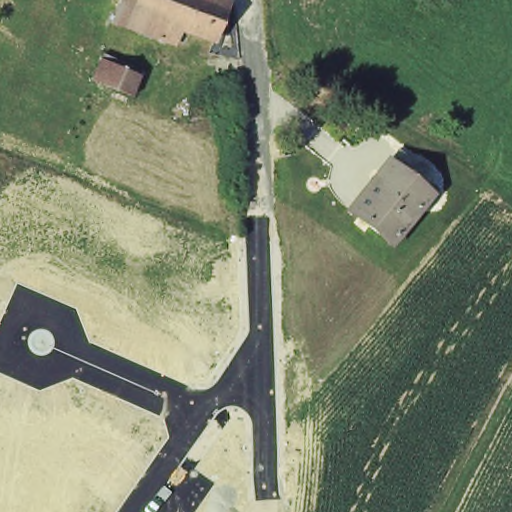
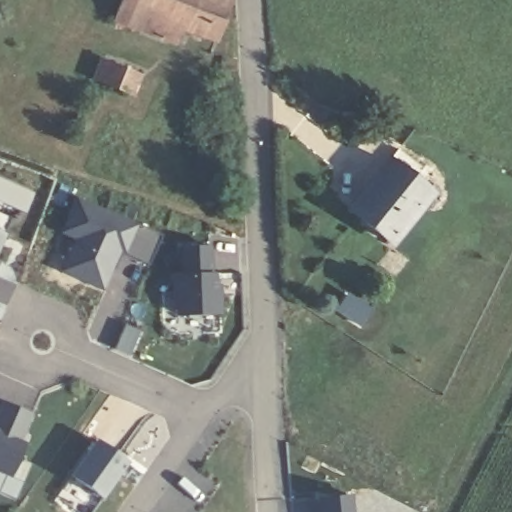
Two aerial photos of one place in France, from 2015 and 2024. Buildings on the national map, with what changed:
unchanged [(185,31),(184,37),(182,42),(119,19),(120,15),(126,0),(230,0),(234,1),(222,39),(197,30),(195,35),(185,31)]
unchanged [(142,76),(135,97),(97,83),(104,61),(142,76)]
unchanged [(430,190),(392,237),(350,204),(385,161),(389,156),(412,175),(430,190)]
new [(62,270),(77,237),(62,231),(76,200),(132,225),(134,222),(161,234),(147,265),(147,264),(148,261),(118,248),(110,266),(114,268),(114,269),(110,267),(100,287),(62,270)]
unchanged [(0,236),(0,233),(1,233),(0,236)]
unchanged [(182,274),(180,247),(209,246),(210,273),(213,273),(214,295),(219,295),(220,313),(178,315),(177,295),(172,296),(171,275),(182,274)]
new [(26,443),(27,443),(11,478),(0,474),(0,408),(2,402),(33,414),(20,441),(26,443)]
new [(102,500),(70,477),(96,440),(127,461),(102,500)]
unchanged [(349,495),(350,512),(320,512),(319,497),(349,495)]

